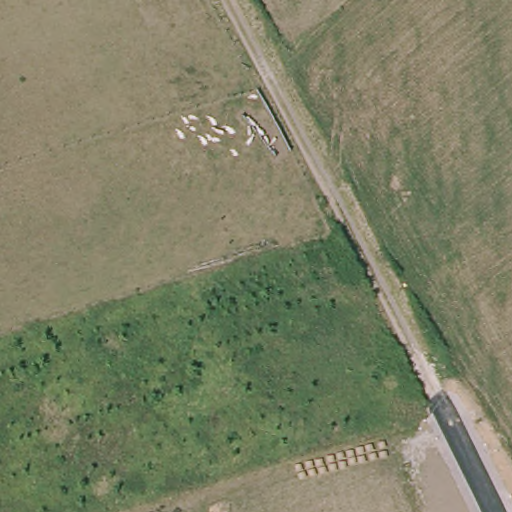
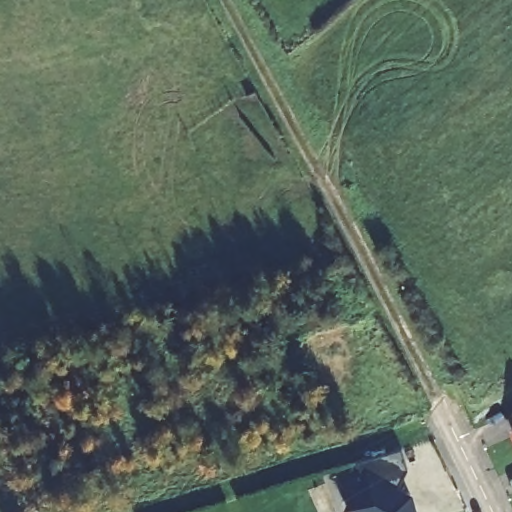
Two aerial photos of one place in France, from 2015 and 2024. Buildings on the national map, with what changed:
new [(409,469),(398,487),(411,495),(416,512),(355,512),(347,508),(363,479),(357,461),(402,448),(409,469)]

